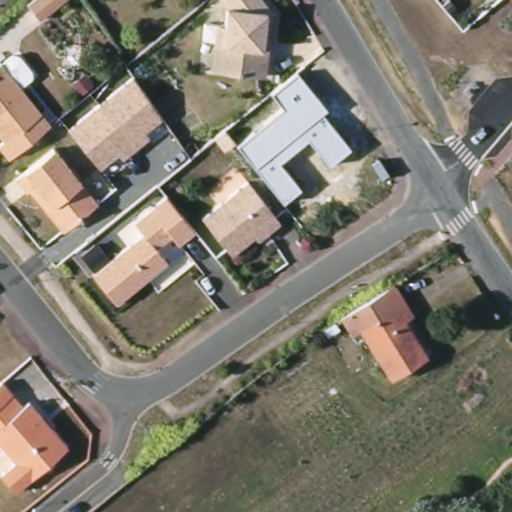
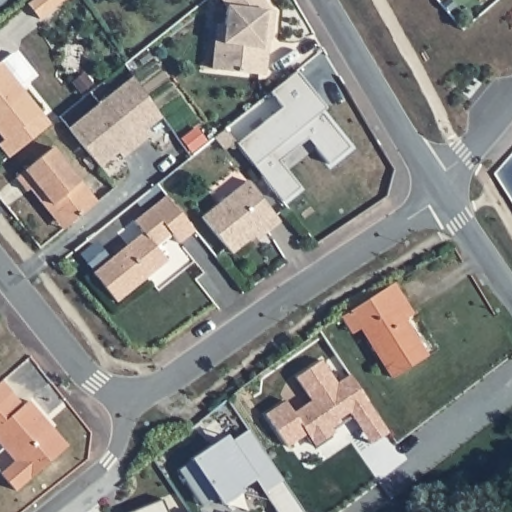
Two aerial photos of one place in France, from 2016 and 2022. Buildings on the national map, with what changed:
unchanged [(40,20),(28,3),(32,0),(64,0),(40,20)]
unchanged [(266,6),(269,7),(265,36),(263,36),(259,70),(210,65),(214,36),(217,37),(220,1),(220,0),(261,0),(266,6)]
unchanged [(5,62),(45,112),(9,141),(0,130),(0,66),(5,62)]
unchanged [(237,143),(284,107),(272,92),(299,71),(328,109),(324,112),(350,150),(330,165),(308,139),(278,161),(302,190),(283,201),(237,143)]
unchanged [(161,119),(144,133),(148,137),(121,158),(117,153),(98,168),(66,126),(132,77),(161,119)]
unchanged [(224,129),(233,141),(224,149),(214,137),(224,129)]
unchanged [(45,202),(34,188),(31,191),(20,178),(57,147),(101,202),(73,225),(67,230),(45,202)]
unchanged [(259,230),(236,248),(207,212),(251,176),(284,217),(271,227),(262,234),(259,230)]
unchanged [(92,273),(79,255),(96,242),(106,257),(141,232),(134,222),(166,196),(192,231),(163,257),(165,260),(116,302),(92,273)]
unchanged [(402,322),(425,358),(392,378),(360,328),(351,334),(341,317),(349,311),(370,299),(392,284),(411,316),(402,322)]
new [(370,444),(353,419),(348,412),(336,420),(338,423),(331,428),(334,432),(314,446),(306,434),(287,446),(265,414),(285,401),(293,413),(310,400),(295,377),(321,360),(336,383),(349,375),(371,407),(387,432),(370,444)]
unchanged [(32,401),(46,417),(56,429),(71,446),(19,491),(4,474),(18,462),(0,440),(0,386),(6,381),(15,392),(27,406),(32,401)]
new [(303,512),(277,512),(263,493),(254,479),(222,504),(217,497),(201,506),(178,471),(192,460),(227,435),(230,441),(248,430),(281,480),(303,512)]
new [(170,512),(133,512),(162,500),(170,512)]

